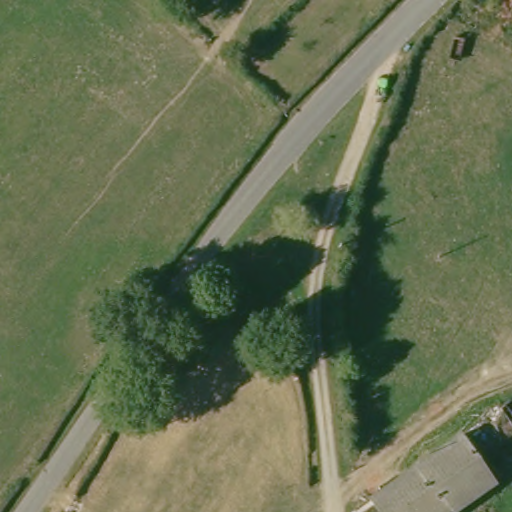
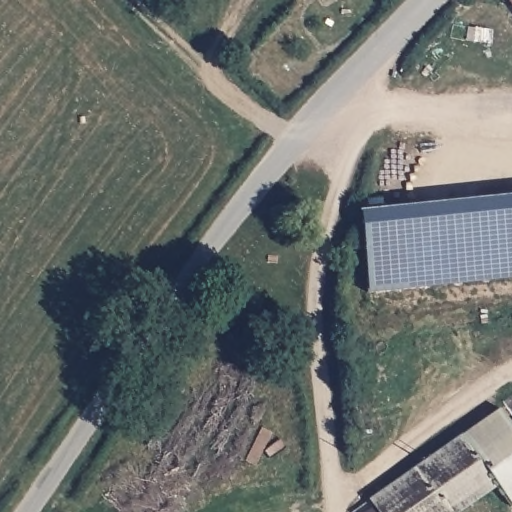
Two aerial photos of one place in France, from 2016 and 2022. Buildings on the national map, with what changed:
new [(370,298),(364,215),(512,206),(512,289),(370,298)]
unchanged [(501,412),(512,427),(512,510),(494,490),(463,512),(363,512),(501,412)]

